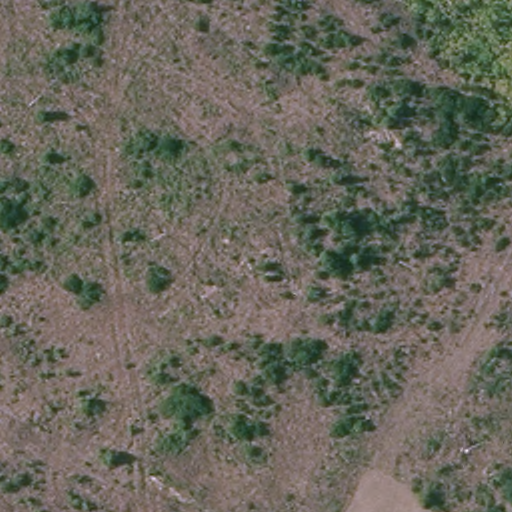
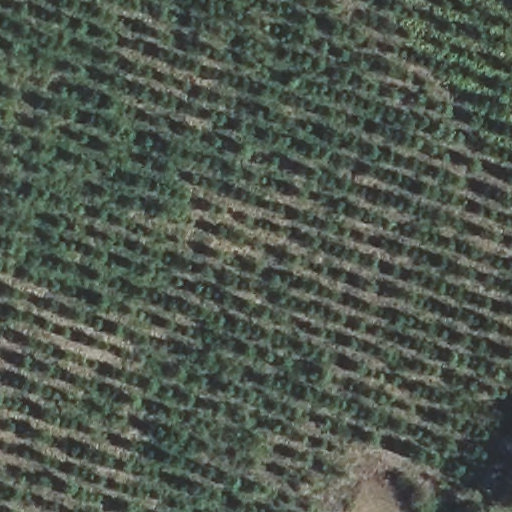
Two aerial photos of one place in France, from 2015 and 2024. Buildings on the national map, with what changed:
[]

